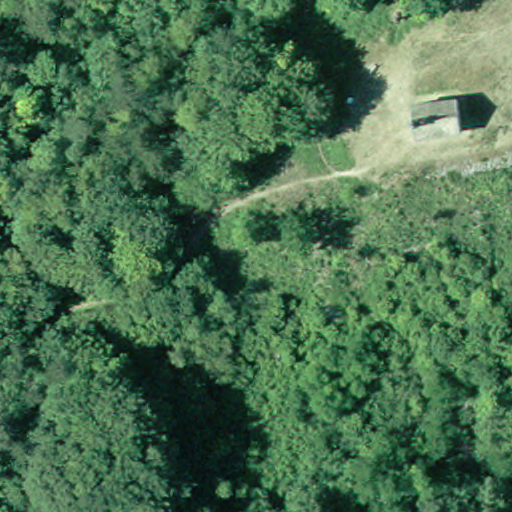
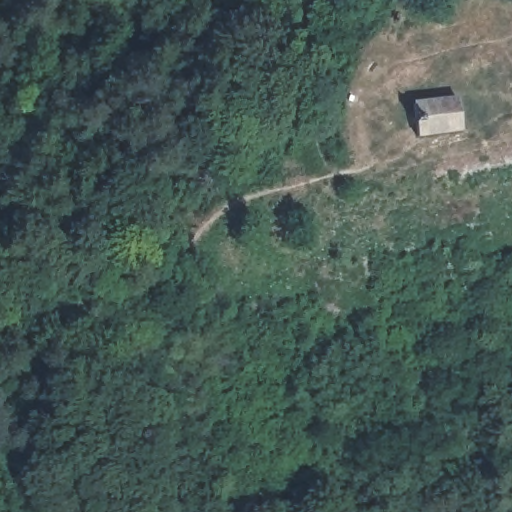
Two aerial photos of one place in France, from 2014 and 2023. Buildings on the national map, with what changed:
unchanged [(417,137),(415,106),(459,103),(461,134),(417,137)]

